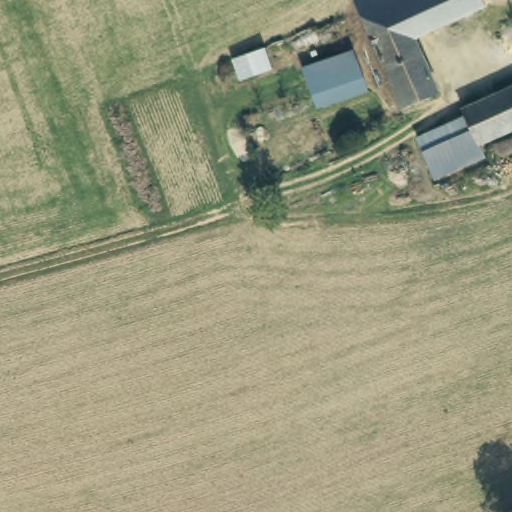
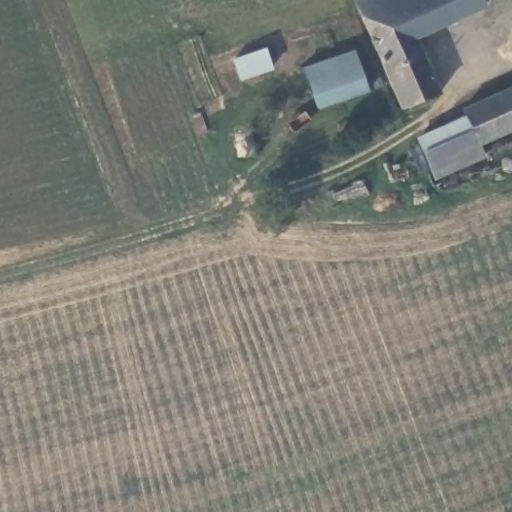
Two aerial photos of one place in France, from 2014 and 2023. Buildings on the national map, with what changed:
unchanged [(409,42),(433,99),(398,114),(355,17),(348,2),(353,0),(474,0),(479,11),(409,42)]
unchanged [(303,69),(354,51),(368,91),(318,109),(303,69)]
unchanged [(493,137),(482,110),(478,102),(512,88),(512,129),(497,136),(493,137)]
unchanged [(482,110),(493,137),(497,136),(503,147),(451,170),(441,147),(433,131),(482,110)]
unchanged [(418,137),(425,137),(428,142),(428,147),(423,150),(418,149),(415,146),(414,141),(418,137)]

